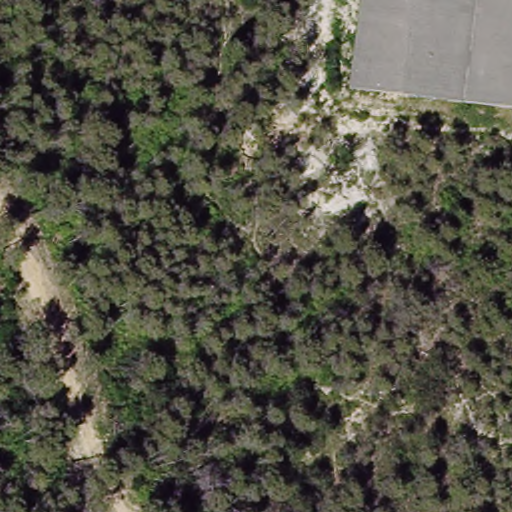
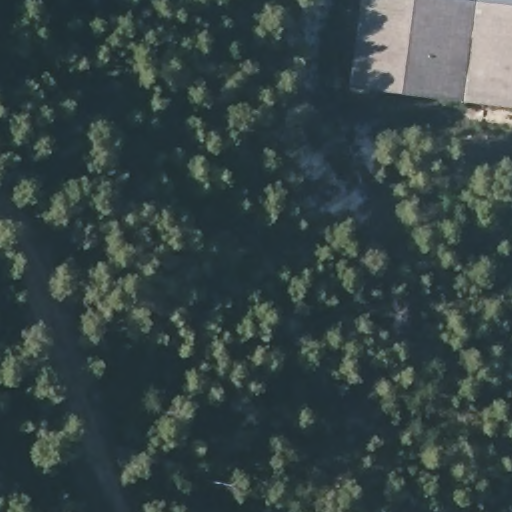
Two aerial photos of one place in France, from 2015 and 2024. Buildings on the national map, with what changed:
unchanged [(353,87),(364,0),(512,0),(512,106),(353,87)]

